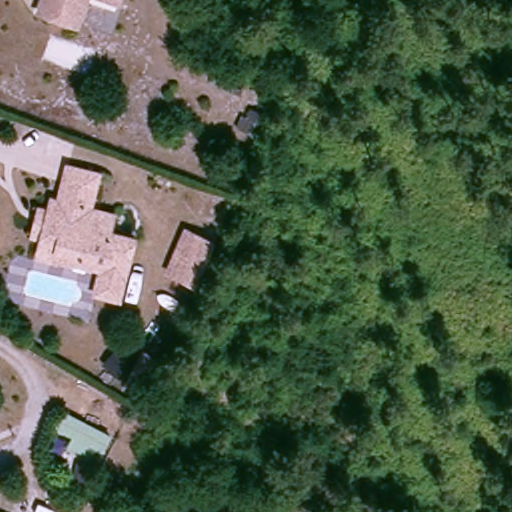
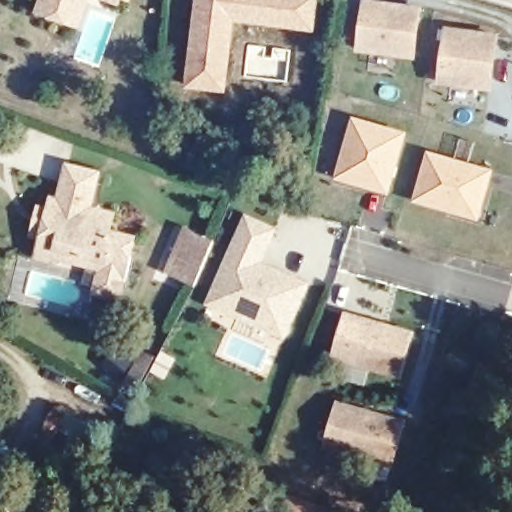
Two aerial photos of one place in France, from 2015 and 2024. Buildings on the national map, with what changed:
unchanged [(62,17),(35,7),(38,0),(81,0),(74,21),(62,17)]
new [(315,32),(235,22),(226,92),(184,88),(194,0),(318,0),(315,32)]
new [(422,5),(416,59),(356,52),(363,0),(379,0),(422,5)]
new [(444,25),(500,32),(492,91),(437,84),(444,25)]
new [(389,194),(333,179),(352,116),(407,132),(389,194)]
new [(494,170),(479,221),(412,201),(427,151),(494,170)]
unchanged [(58,211),(65,175),(95,181),(88,216),(112,221),(109,239),(134,244),(129,269),(121,305),(98,300),(105,267),(106,262),(107,259),(74,252),(62,250),(60,257),(59,261),(55,260),(41,257),(46,235),(36,232),(41,210),(51,212),(51,209),(58,211)]
new [(278,228),(264,262),(310,282),(285,339),(204,304),(245,213),(278,228)]
unchanged [(188,280),(161,269),(179,227),(206,238),(188,280)]
new [(330,360),(345,311),(416,330),(403,378),(330,360)]
unchanged [(119,342),(135,354),(123,370),(107,358),(119,342)]
new [(406,419),(392,469),(323,447),(336,398),(406,419)]
unchanged [(104,429),(92,458),(60,443),(65,431),(48,423),(56,406),(104,429)]
new [(345,512),(287,512),(293,494),(345,512)]

